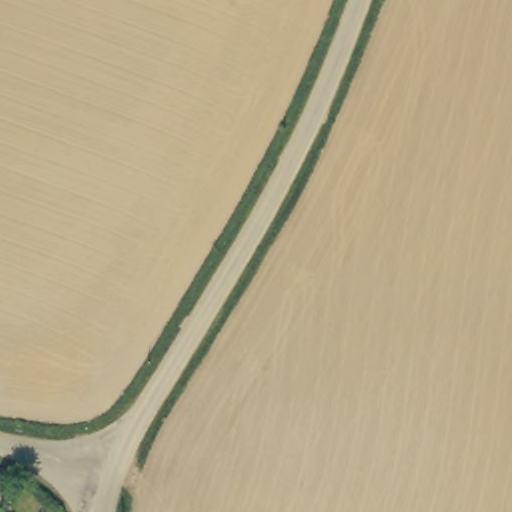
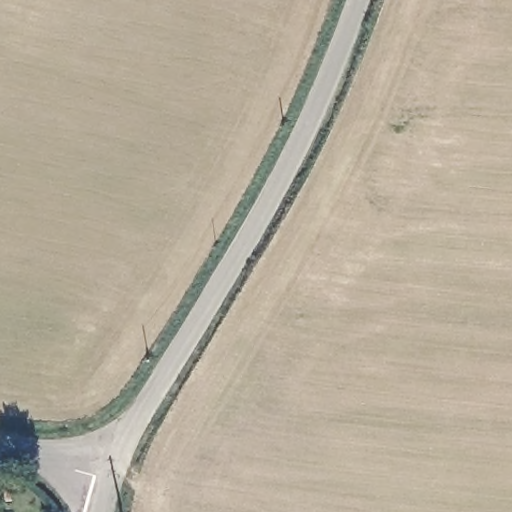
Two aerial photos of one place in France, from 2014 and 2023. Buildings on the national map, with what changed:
unchanged [(0,501),(0,469),(1,470),(2,502),(0,501)]

